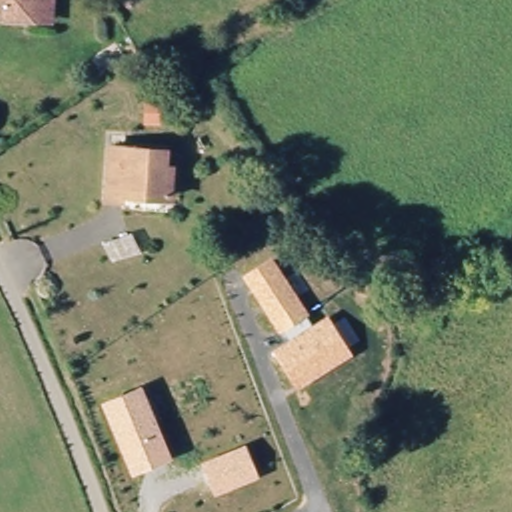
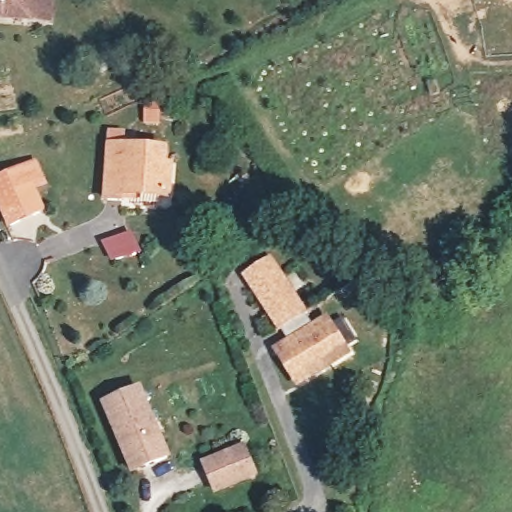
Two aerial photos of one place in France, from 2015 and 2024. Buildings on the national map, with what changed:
unchanged [(54,18),(29,16),(3,13),(2,1),(0,1),(0,0),(57,0),(54,18)]
new [(501,1),(501,0),(511,0),(501,1)]
unchanged [(126,208),(110,206),(116,152),(168,155),(167,174),(175,175),(172,203),(139,200),(127,199),(126,208)]
new [(49,185),(37,190),(47,212),(7,230),(0,214),(0,170),(36,155),(49,185)]
unchanged [(272,256),(308,312),(312,323),(327,312),(353,354),(297,391),(270,348),(287,339),(282,331),(279,333),(242,275),(272,256)]
unchanged [(100,401),(142,385),(171,458),(131,475),(100,401)]
unchanged [(202,462),(244,444),(258,477),(215,495),(202,462)]

